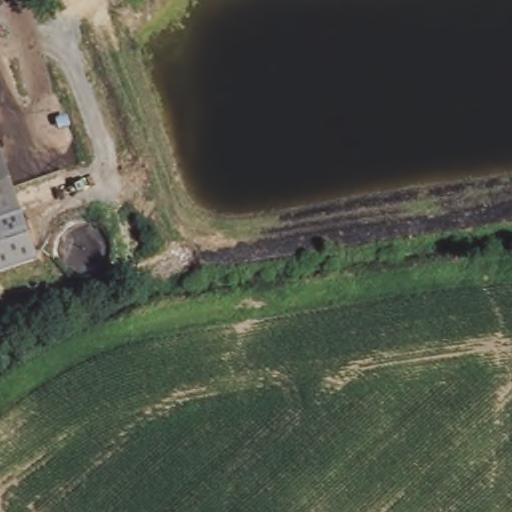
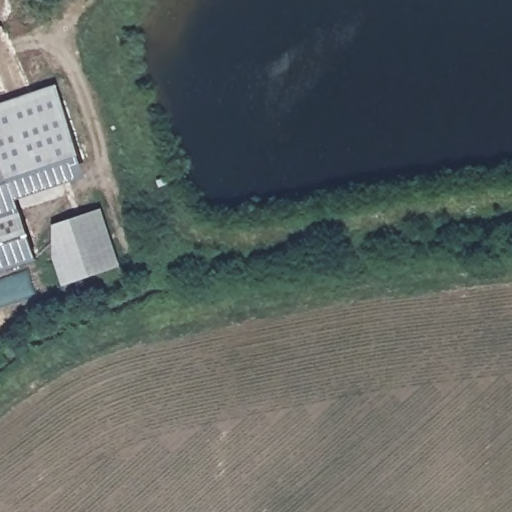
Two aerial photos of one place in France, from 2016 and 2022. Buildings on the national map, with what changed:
unchanged [(0,22),(1,27),(0,27),(0,22)]
new [(85,164),(16,186),(0,136),(0,103),(59,84),(85,164)]
unchanged [(0,278),(0,144),(39,264),(0,278)]
new [(124,267),(77,282),(58,224),(105,209),(124,267)]

